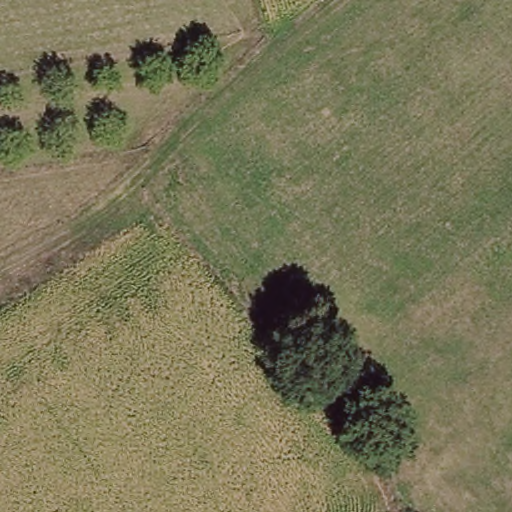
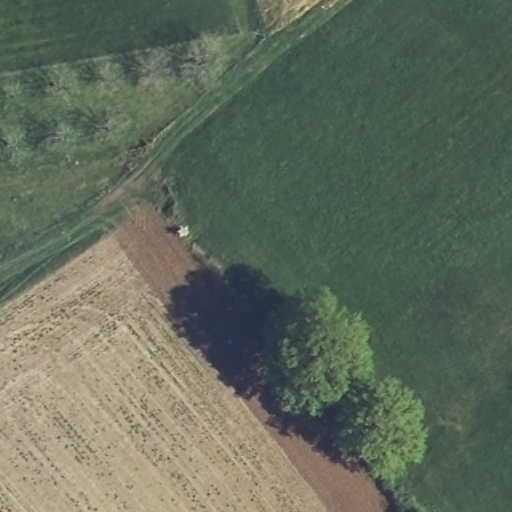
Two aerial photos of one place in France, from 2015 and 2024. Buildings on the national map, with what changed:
[]

